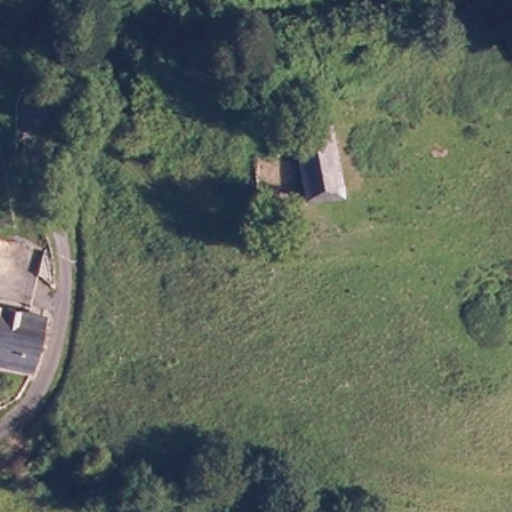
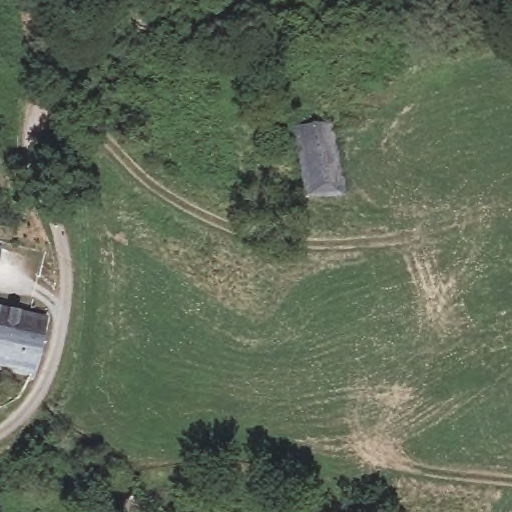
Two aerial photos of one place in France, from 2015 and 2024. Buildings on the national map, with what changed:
unchanged [(345,191),(307,196),(306,193),(296,122),(333,117),(345,191)]
unchanged [(0,365),(0,307),(42,316),(28,371),(0,365)]

